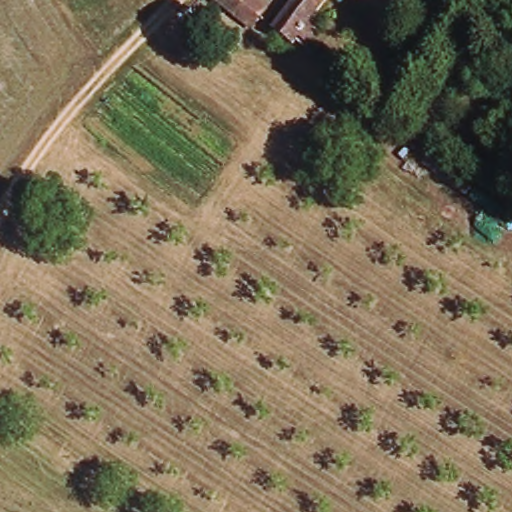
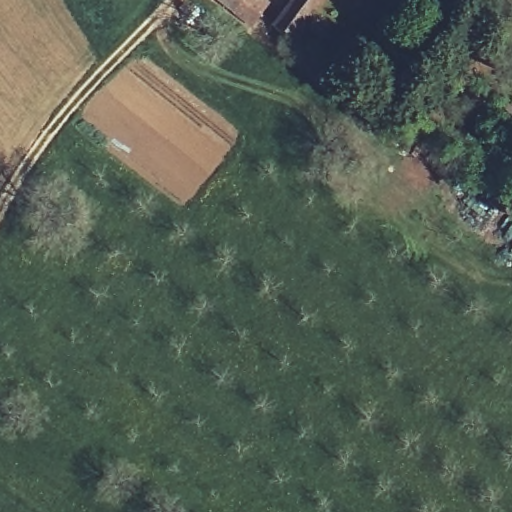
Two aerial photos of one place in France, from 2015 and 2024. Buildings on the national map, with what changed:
unchanged [(257,0),(260,2),(245,22),(216,0),(257,0)]
unchanged [(297,41),(279,27),(299,0),(329,0),(312,21),(324,31),(314,44),(302,34),(297,41)]
unchanged [(512,126),(512,146),(509,150),(499,143),(512,126)]

